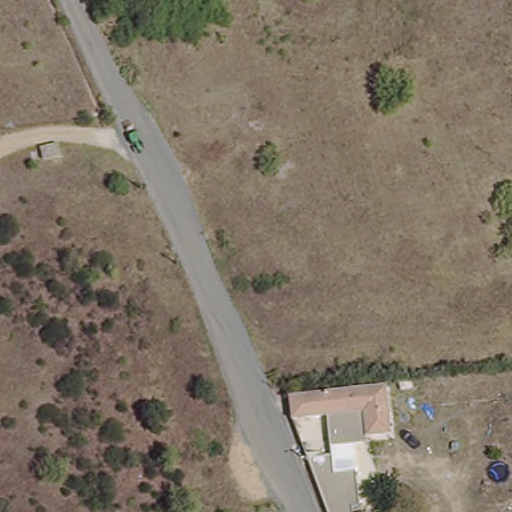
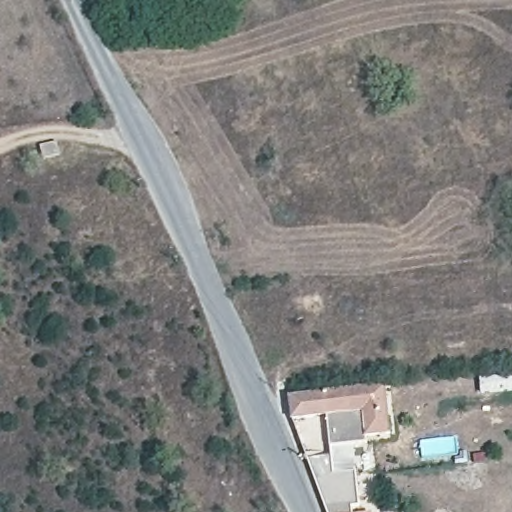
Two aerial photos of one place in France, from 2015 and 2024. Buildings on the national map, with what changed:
unchanged [(392,433),(369,436),(366,411),(296,416),(291,395),(388,388),(392,433)]

